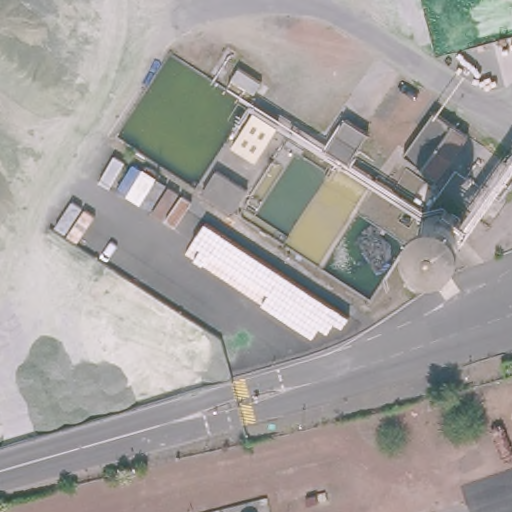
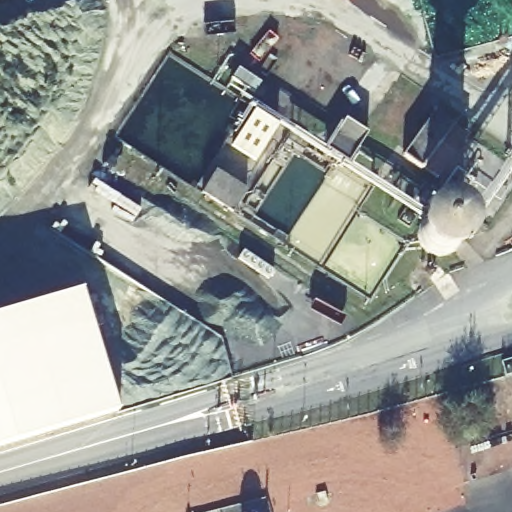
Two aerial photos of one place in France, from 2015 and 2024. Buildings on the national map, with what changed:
unchanged [(438,178),(403,154),(435,106),(469,133),(438,178)]
unchanged [(256,116),(278,130),(256,163),(233,149),(256,116)]
unchanged [(347,122),(369,135),(349,165),(329,151),(347,122)]
unchanged [(217,176),(247,195),(233,215),(204,196),(217,176)]
new [(116,409),(0,445),(0,314),(80,290),(116,409)]

